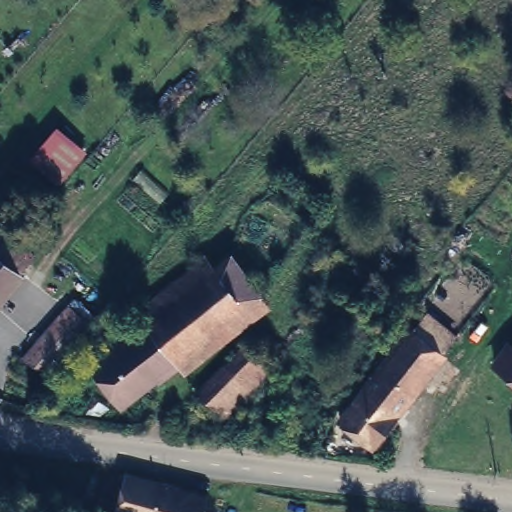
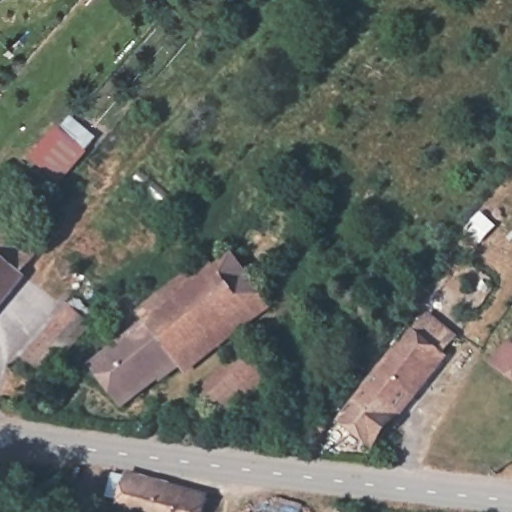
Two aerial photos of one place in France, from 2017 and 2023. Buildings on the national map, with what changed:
unchanged [(0,226),(0,225),(30,250),(17,267),(24,272),(0,300),(0,226)]
unchanged [(93,368),(128,343),(120,332),(167,297),(210,265),(219,276),(235,264),(265,304),(230,330),(122,410),(93,368)]
unchanged [(17,357),(51,317),(70,297),(90,314),(70,337),(37,375),(17,357)]
unchanged [(437,353),(439,358),(365,443),(334,420),(411,331),(415,332),(427,318),(450,340),(437,353)]
unchanged [(273,369),(267,374),(263,372),(220,407),(197,382),(249,339),(273,369)]
unchanged [(497,367),(509,347),(512,348),(512,378),(497,367)]
unchanged [(207,512),(144,512),(118,506),(129,468),(125,467),(127,464),(144,467),(212,487),(207,512)]

